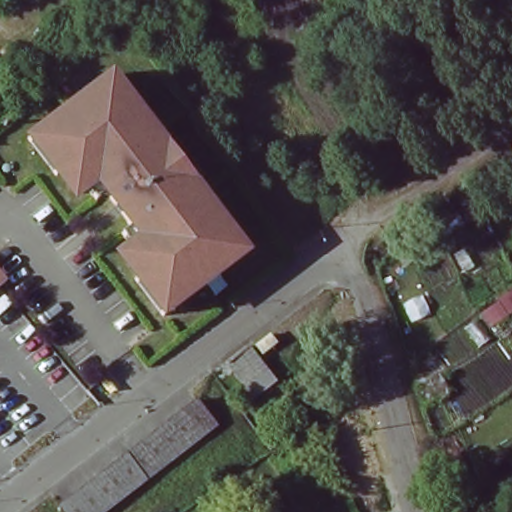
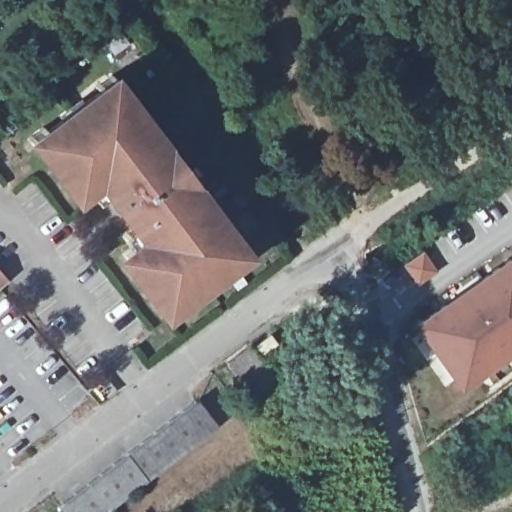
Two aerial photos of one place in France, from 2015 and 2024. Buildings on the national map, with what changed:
unchanged [(134,225),(109,191),(100,199),(91,187),(83,192),(67,171),(60,173),(33,137),(47,126),(51,131),(66,119),(70,124),(89,108),(86,103),(104,90),(100,85),(117,72),(145,110),(141,113),(155,133),(160,131),(208,195),(204,199),(218,217),(223,215),(251,252),(237,263),(232,259),(215,272),(210,268),(192,282),(196,288),(179,299),(181,304),(168,314),(139,279),(144,275),(127,252),(136,246),(125,233),(134,225)]
new [(512,257),(512,354),(460,391),(412,325),(511,256),(512,257)]
unchanged [(6,279),(0,284),(0,273),(6,279)]
demolished [(156,348),(149,353),(143,346),(150,341),(156,348)]
unchanged [(271,371),(249,387),(233,364),(255,349),(271,371)]
demolished [(138,361),(130,368),(124,360),(132,354),(138,361)]
unchanged [(214,427),(104,512),(66,512),(62,506),(195,402),(214,427)]

